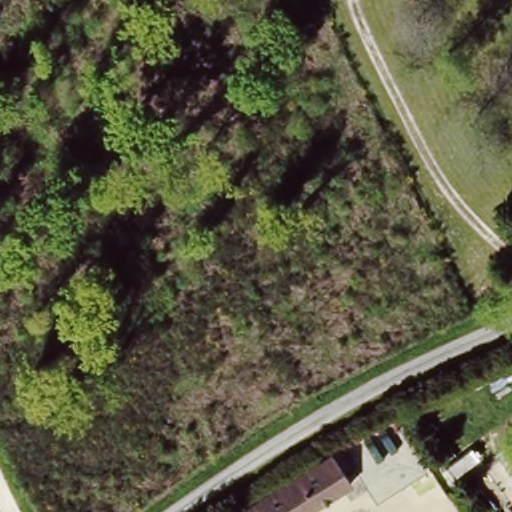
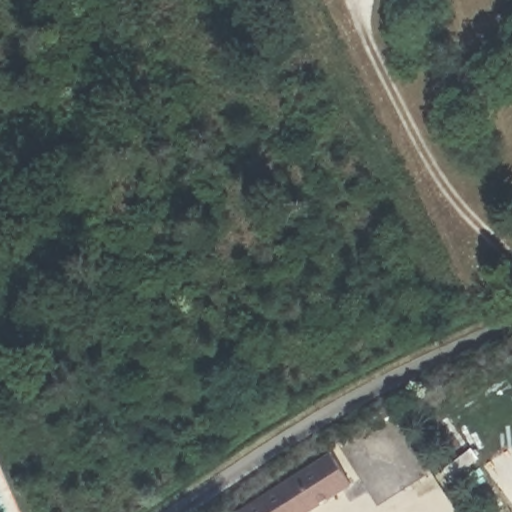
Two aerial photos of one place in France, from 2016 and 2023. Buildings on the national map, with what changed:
unchanged [(352,484),(306,512),(233,512),(332,450),(352,484)]

